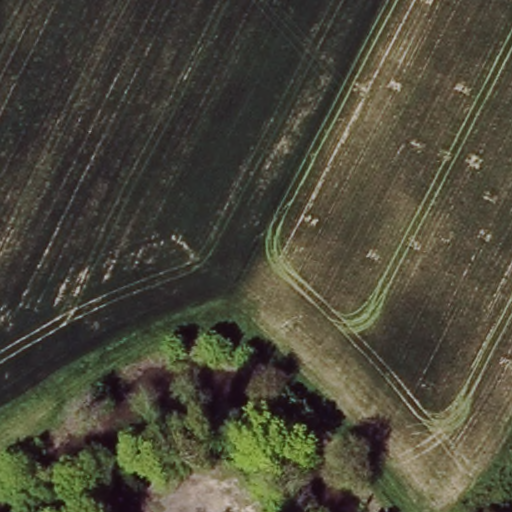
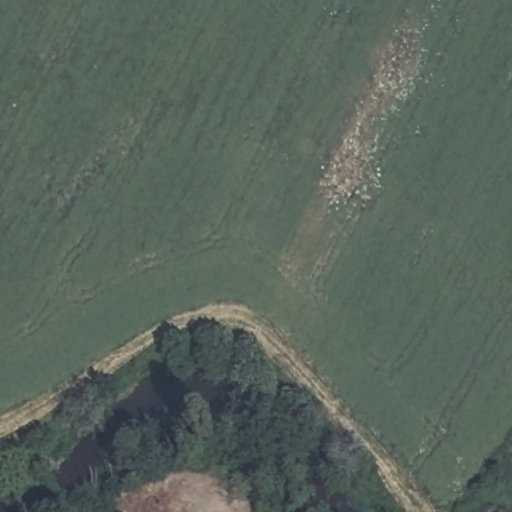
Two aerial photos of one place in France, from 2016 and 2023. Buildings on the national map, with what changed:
[]

